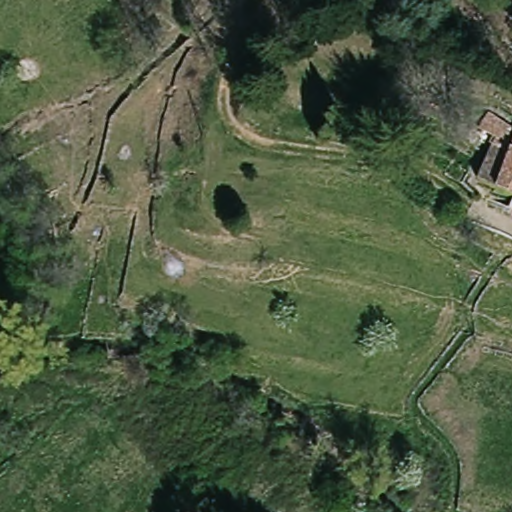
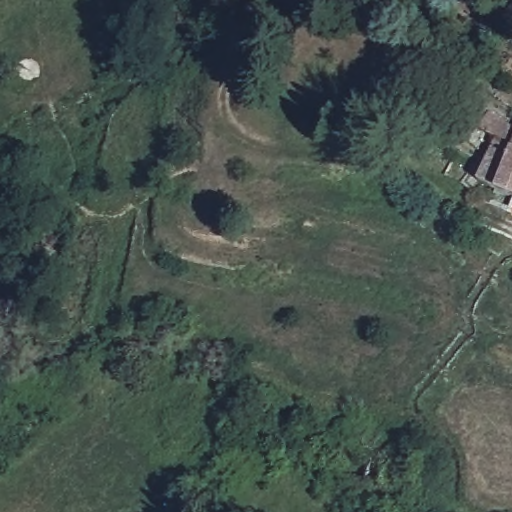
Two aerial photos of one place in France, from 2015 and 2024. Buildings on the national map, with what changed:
unchanged [(476,182),(494,141),(471,131),(482,106),(512,126),(512,196),(494,189),(476,182)]

